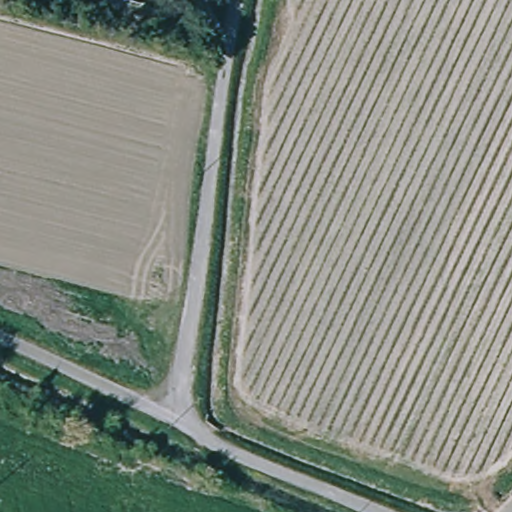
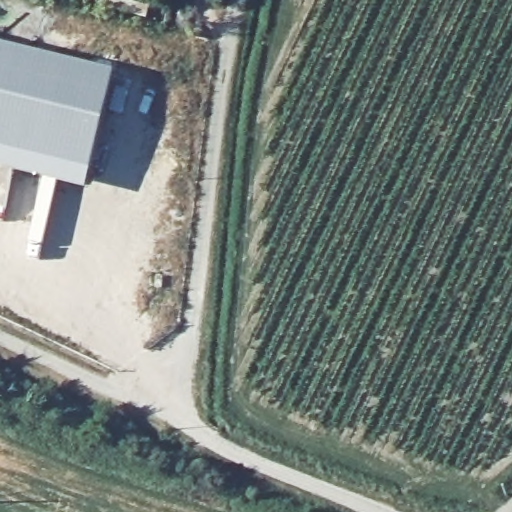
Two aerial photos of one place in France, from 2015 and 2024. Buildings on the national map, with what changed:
new [(0,172),(0,47),(116,76),(88,194),(0,172)]

